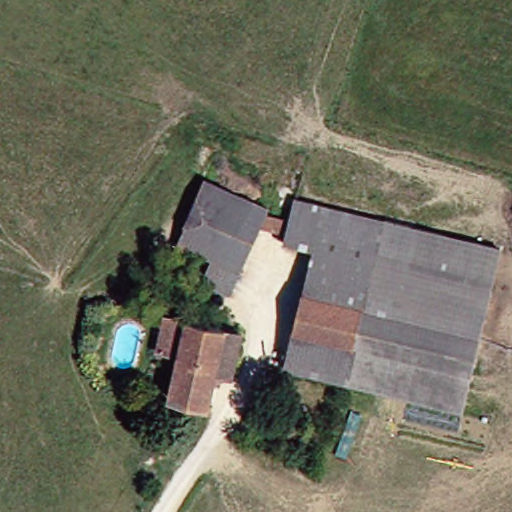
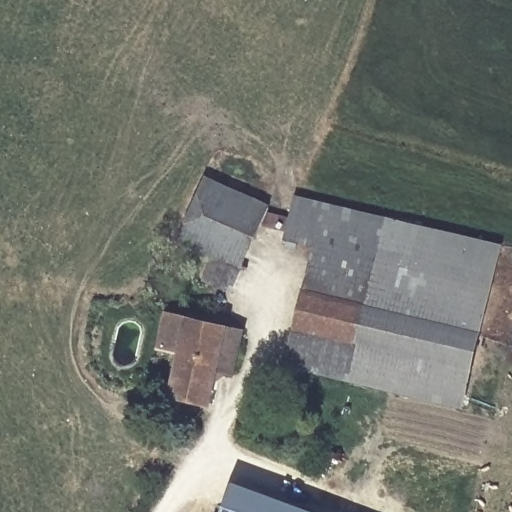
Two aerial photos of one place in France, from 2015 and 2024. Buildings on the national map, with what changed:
unchanged [(317,244),(265,227),(242,266),(180,239),(208,178),(271,209),(290,217),(299,195),(333,204),(506,240),(465,411),(350,384),(368,303),(307,290),(317,244)]
unchanged [(287,365),(307,290),(368,303),(350,384),(287,365)]
unchanged [(176,392),(184,356),(160,349),(170,311),(230,324),(250,327),(242,371),(221,367),(212,401),(176,392)]
new [(235,481),(312,512),(222,512),(235,481)]

